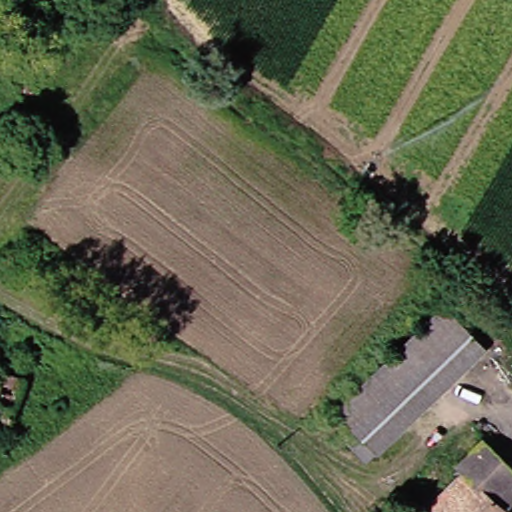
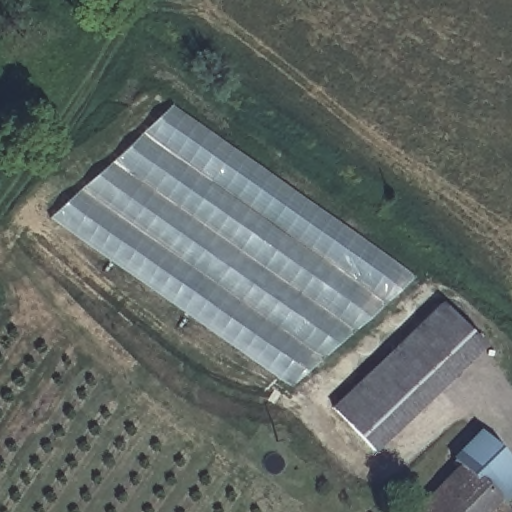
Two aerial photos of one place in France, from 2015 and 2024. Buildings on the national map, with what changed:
new [(296,386),(50,217),(170,106),(417,278),(296,386)]
unchanged [(491,352),(396,451),(343,399),(437,301),(491,352)]
demolished [(18,318),(5,344),(32,360),(8,409),(0,405),(0,309),(18,318)]
unchanged [(461,472),(453,461),(487,427),(507,448),(501,455),(512,466),(512,492),(500,505),(506,512),(421,512),(461,472)]

